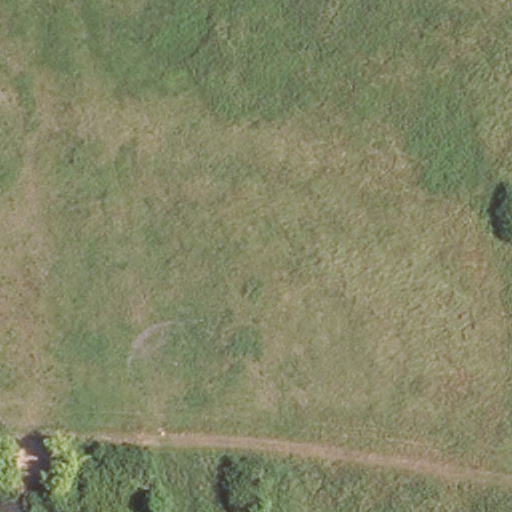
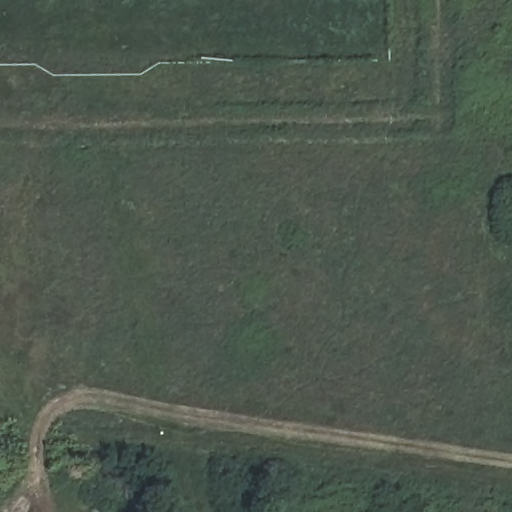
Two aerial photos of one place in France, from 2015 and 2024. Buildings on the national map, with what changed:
unchanged [(0,474),(0,457),(11,457),(12,473),(0,474)]

